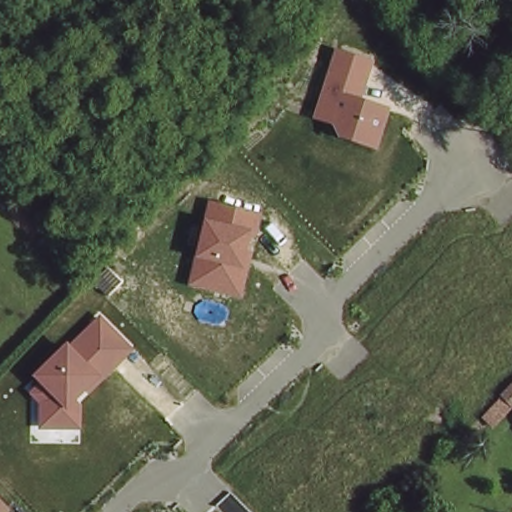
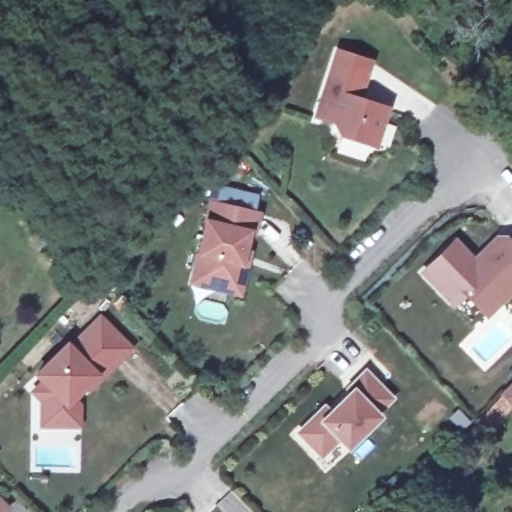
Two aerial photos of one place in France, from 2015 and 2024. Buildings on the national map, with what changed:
unchanged [(334,51),(372,62),(362,100),(389,108),(377,151),(336,139),(331,125),(311,120),(334,51)]
unchanged [(262,212),(243,296),(187,286),(207,201),(262,212)]
new [(414,272),(452,237),(471,258),(494,235),(506,235),(512,241),(512,294),(484,320),(465,296),(452,311),(414,272)]
unchanged [(36,384),(30,378),(97,313),(133,350),(80,398),(81,429),(39,429),(38,405),(29,392),(36,384)]
new [(378,413),(381,418),(346,452),(336,442),(320,461),(294,433),(324,405),(329,409),(347,391),(344,388),(364,368),(394,398),(378,413)]
unchanged [(503,398),(512,390),(512,408),(503,398)]
unchanged [(5,512),(0,512),(0,499),(9,508),(5,512)]

